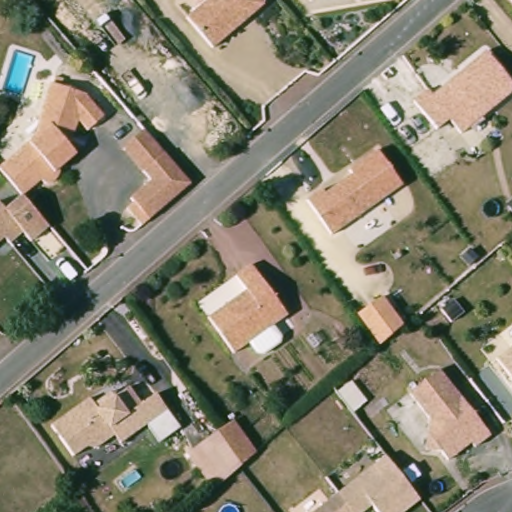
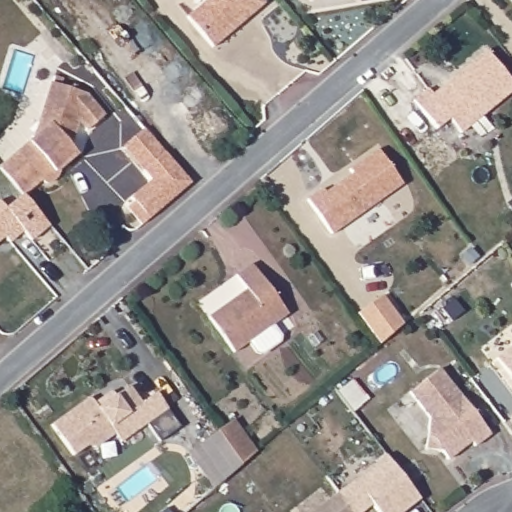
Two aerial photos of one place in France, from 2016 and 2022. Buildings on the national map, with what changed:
unchanged [(209,47),(170,1),(170,0),(258,0),(260,3),(246,15),(236,23),(209,47)]
unchanged [(512,93),(461,132),(451,122),(441,130),(415,98),(428,88),(432,93),(489,49),(512,77),(512,93)]
unchanged [(40,111),(52,81),(87,92),(104,111),(87,126),(78,117),(69,141),(76,149),(61,163),(61,166),(58,172),(54,176),(49,178),(44,178),(40,176),(22,192),(0,167),(0,163),(31,137),(40,111)]
unchanged [(137,202),(134,198),(155,181),(146,170),(127,149),(147,131),(167,153),(193,183),(145,225),(130,208),(137,202)]
unchanged [(406,187),(334,235),(309,200),(328,186),(331,189),(350,175),(348,172),(381,149),(406,187)]
unchanged [(5,206),(22,192),(48,223),(30,238),(22,228),(9,239),(4,233),(0,236),(0,200),(5,206)]
unchanged [(211,320),(249,293),(239,278),(253,267),(290,317),(236,355),(211,320)]
unchanged [(512,342),(512,378),(495,356),(512,342)]
unchanged [(448,455),(444,449),(428,447),(432,417),(412,390),(442,367),(493,433),(477,445),(474,440),(459,451),(450,458),(448,455)]
unchanged [(107,403),(117,396),(122,401),(135,392),(147,407),(161,397),(173,413),(127,447),(122,440),(104,452),(94,451),(81,460),(58,430),(96,402),(100,408),(107,403)]
unchanged [(236,417),(259,450),(244,463),(219,429),(236,417)]
unchanged [(409,512),(380,512),(371,501),(358,512),(353,512),(338,491),(388,453),(425,500),(409,512)]
unchanged [(78,512),(64,492),(76,483),(96,512),(78,512)]
unchanged [(353,512),(310,512),(338,491),(353,512)]

